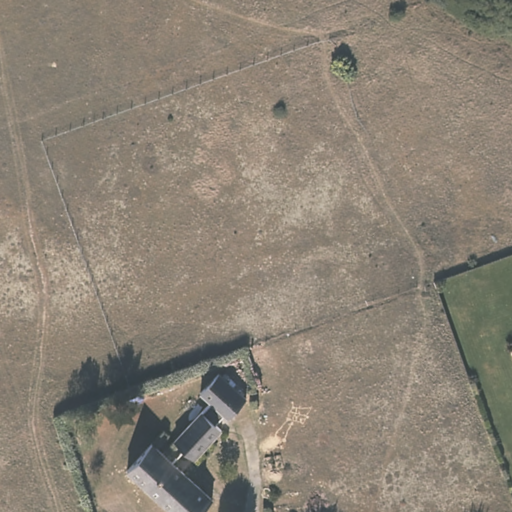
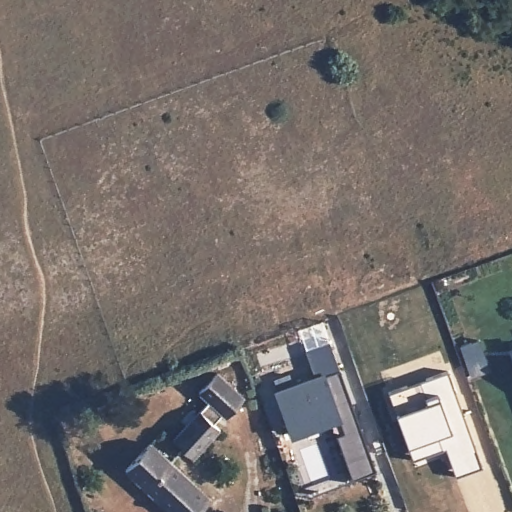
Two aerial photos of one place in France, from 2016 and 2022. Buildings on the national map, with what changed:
unchanged [(247,395),(228,415),(225,412),(217,420),(222,425),(194,455),(175,436),(211,398),(200,388),(218,369),(247,395)]
new [(341,369),(378,471),(354,480),(338,435),(345,432),(339,416),(291,433),(276,392),(341,369)]
new [(456,475),(447,448),(415,460),(409,445),(397,414),(390,391),(449,371),(484,466),(456,475)]
unchanged [(152,445),(183,472),(212,498),(200,512),(173,512),(127,470),(151,444),(152,445)]

